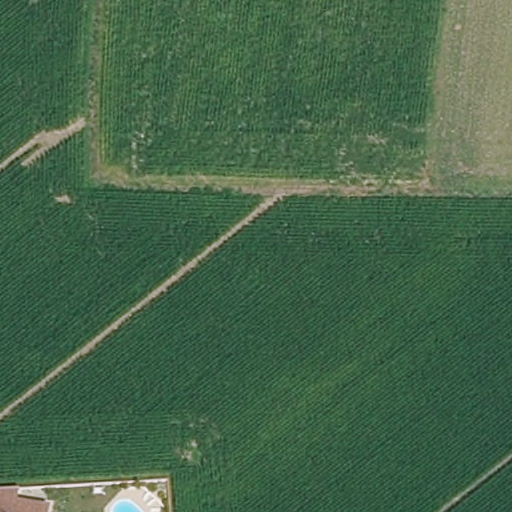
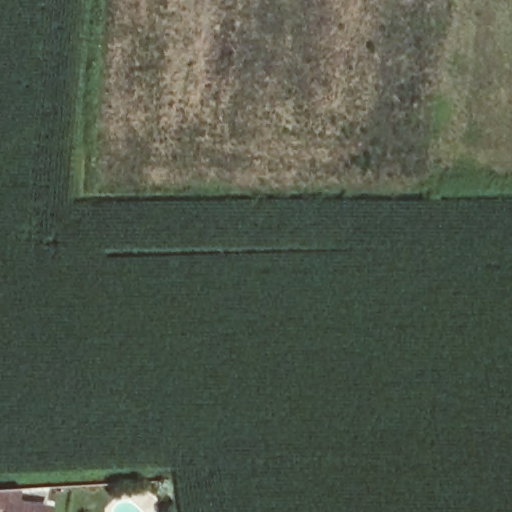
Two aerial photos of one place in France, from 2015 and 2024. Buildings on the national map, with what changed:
unchanged [(6,512),(0,512),(0,492),(20,491),(19,506),(7,504),(6,512)]
unchanged [(7,504),(19,506),(48,509),(47,512),(6,512),(7,504)]

